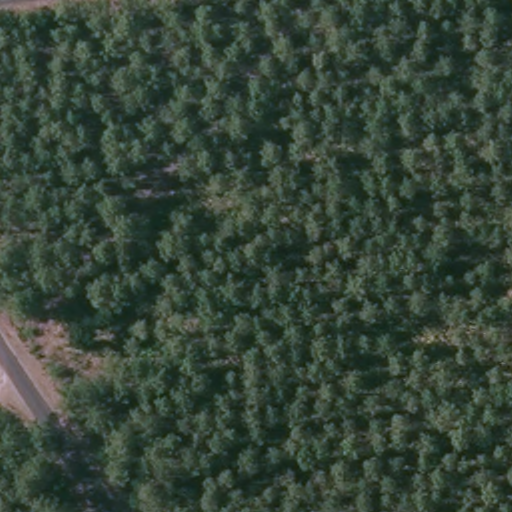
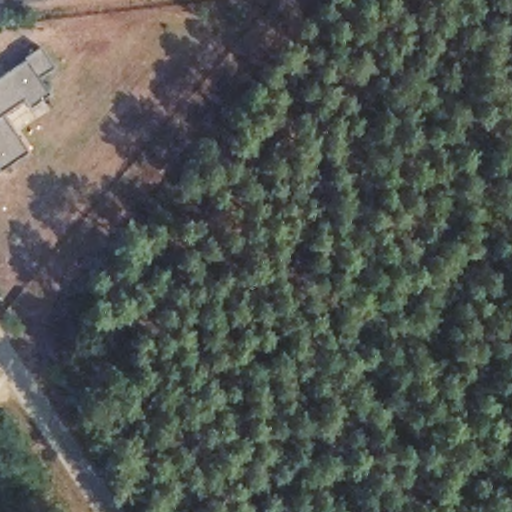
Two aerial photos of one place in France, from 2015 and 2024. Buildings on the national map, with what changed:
new [(23,58),(41,46),(54,69),(39,79),(50,94),(31,107),(26,99),(4,113),(29,151),(2,170),(0,168),(0,78),(25,61),(23,58)]

